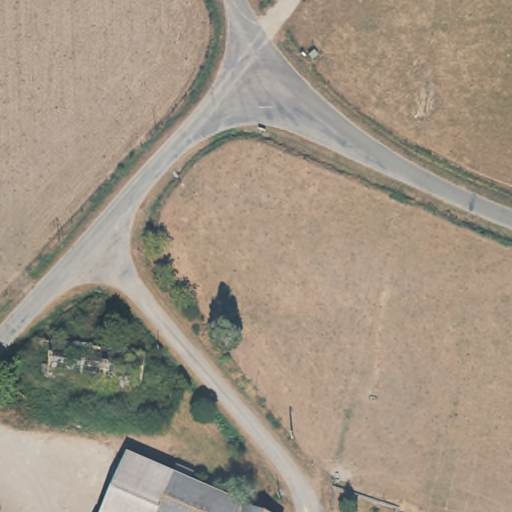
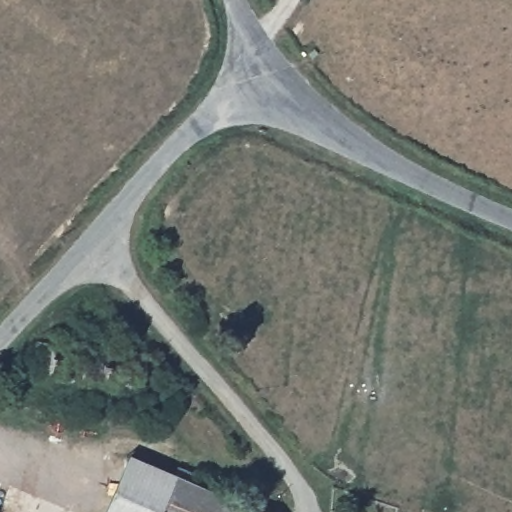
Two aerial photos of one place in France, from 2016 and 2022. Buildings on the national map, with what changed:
unchanged [(152,359),(149,397),(37,385),(42,346),(152,359)]
unchanged [(235,508),(233,512),(106,512),(126,459),(235,508)]
unchanged [(235,508),(247,512),(233,512),(235,508)]

